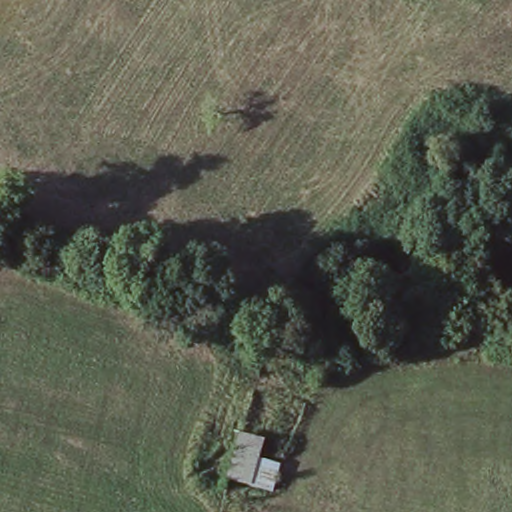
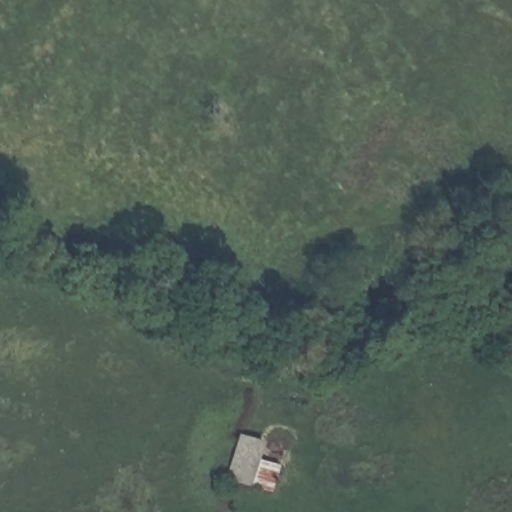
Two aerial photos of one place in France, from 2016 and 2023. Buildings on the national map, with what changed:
unchanged [(263,436),(260,452),(283,462),(275,488),(225,472),(238,429),(263,436)]

